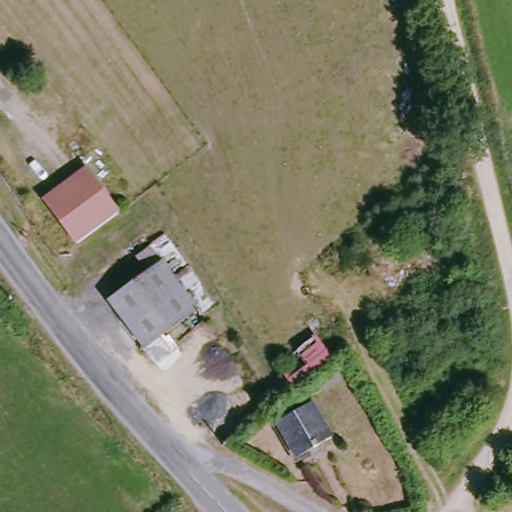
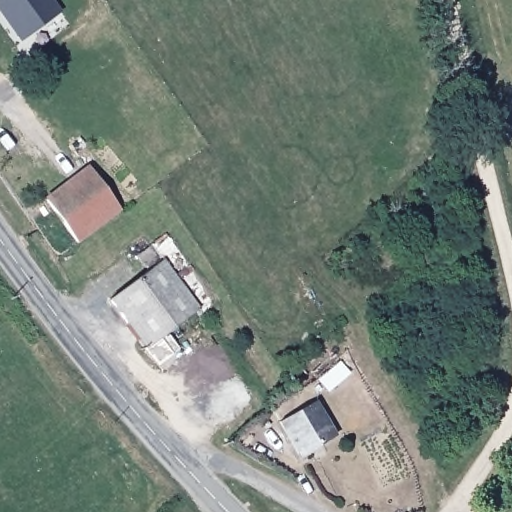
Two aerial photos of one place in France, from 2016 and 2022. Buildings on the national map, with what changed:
new [(50,0),(61,15),(20,41),(0,15),(0,0),(50,0)]
unchanged [(75,241),(43,198),(80,170),(85,166),(117,209),(112,213),(75,241)]
unchanged [(216,295),(168,333),(179,349),(159,364),(112,302),(152,270),(140,255),(168,233),(216,295)]
unchanged [(320,335),(340,359),(300,391),(283,365),(320,335)]
unchanged [(317,406),(336,438),(320,448),(317,444),(298,456),(281,428),(317,406)]

